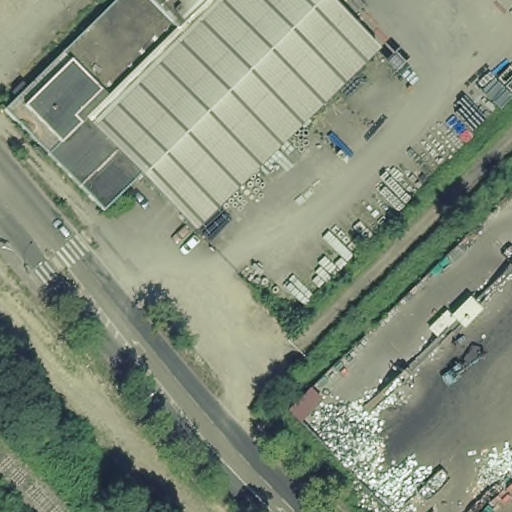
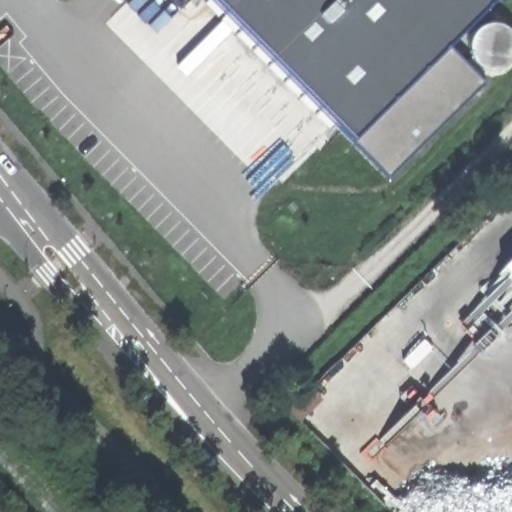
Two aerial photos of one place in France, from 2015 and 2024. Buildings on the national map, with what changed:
demolished [(169,21),(84,111),(136,174),(100,207),(2,98),(101,0),(148,0),(169,21)]
demolished [(169,21),(148,0),(332,0),(376,45),(195,224),(136,174),(84,111),(169,21)]
new [(449,46),(486,83),(389,179),(353,141),(212,0),(495,0),(449,46)]

